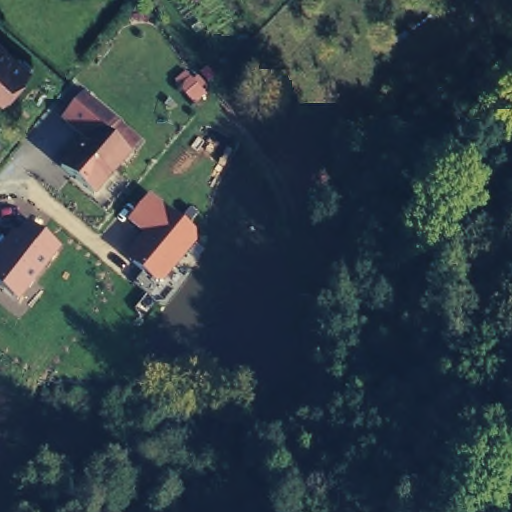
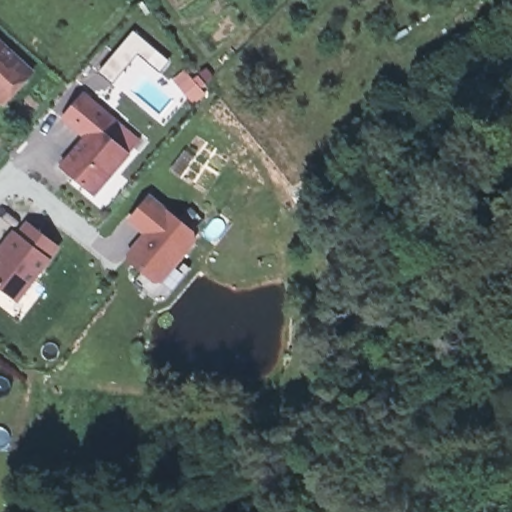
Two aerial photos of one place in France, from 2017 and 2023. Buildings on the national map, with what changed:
unchanged [(27,72),(1,101),(0,100),(0,47),(27,72)]
unchanged [(114,120),(103,132),(127,152),(92,192),(58,165),(82,136),(59,116),(80,92),(114,120)]
unchanged [(124,256),(144,234),(129,220),(153,195),(195,232),(197,244),(158,287),(124,256)]
unchanged [(0,289),(0,261),(0,260),(0,247),(15,230),(22,234),(32,222),(61,247),(52,258),(17,302),(0,289)]

